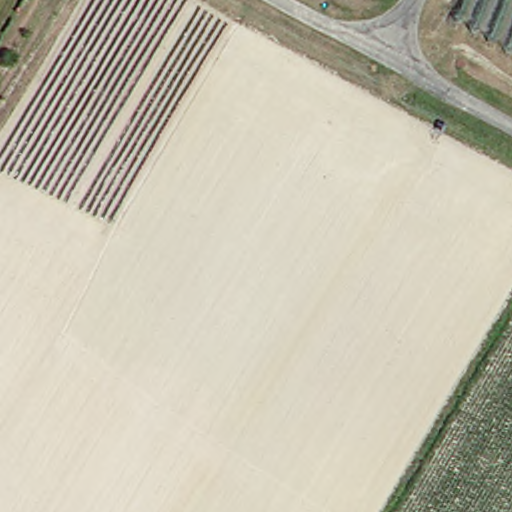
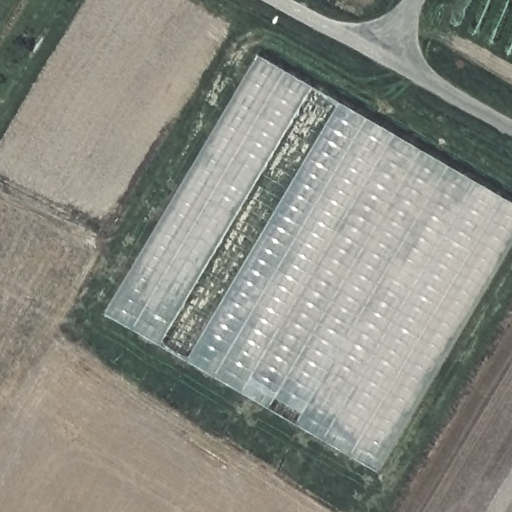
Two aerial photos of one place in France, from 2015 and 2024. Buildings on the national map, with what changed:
new [(376,472),(106,311),(259,55),(512,200),(512,244),(376,472)]

